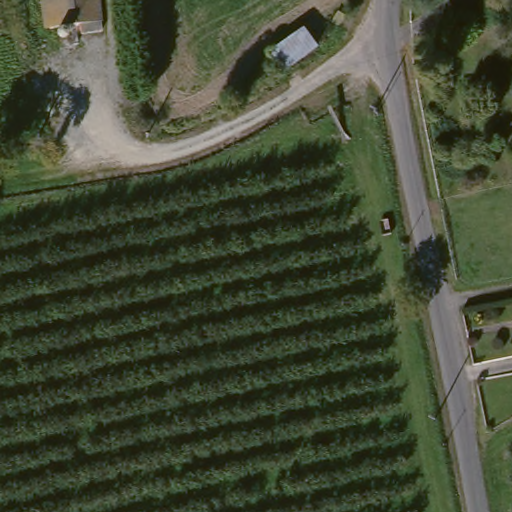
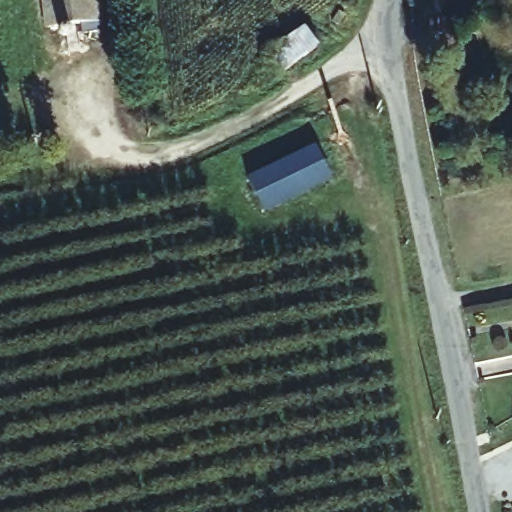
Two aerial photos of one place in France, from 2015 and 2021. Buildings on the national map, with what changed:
unchanged [(101,21),(103,30),(83,33),(81,24),(46,28),(43,0),(99,0),(101,21)]
unchanged [(304,28),(319,49),(279,77),(267,54),(304,28)]
new [(334,180),(263,215),(245,180),(315,144),(334,180)]

